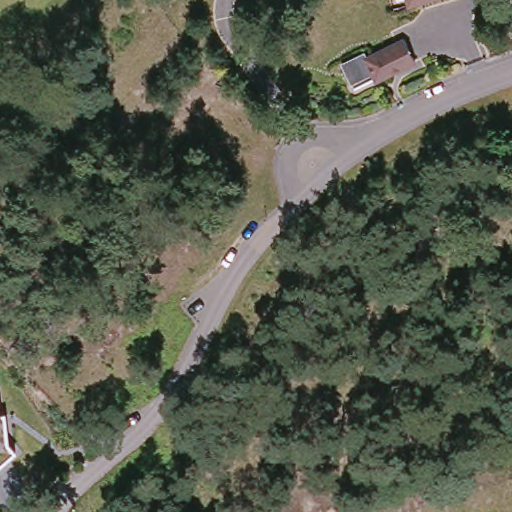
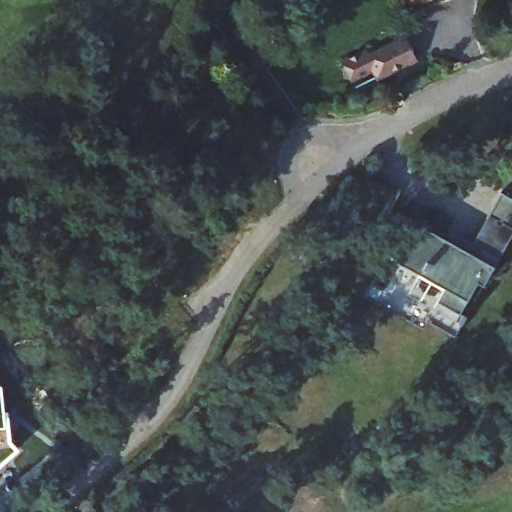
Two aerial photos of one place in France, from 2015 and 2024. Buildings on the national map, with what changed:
unchanged [(405,0),(446,0),(407,8),(405,0)]
unchanged [(405,39),(415,64),(380,80),(375,73),(354,84),(342,61),(366,50),(370,56),(405,39)]
new [(428,323),(423,329),(376,300),(414,230),(469,257),(501,197),(512,203),(512,234),(455,334),(428,323)]
unchanged [(1,391),(2,413),(8,413),(10,442),(17,453),(0,468),(0,391),(1,391)]

